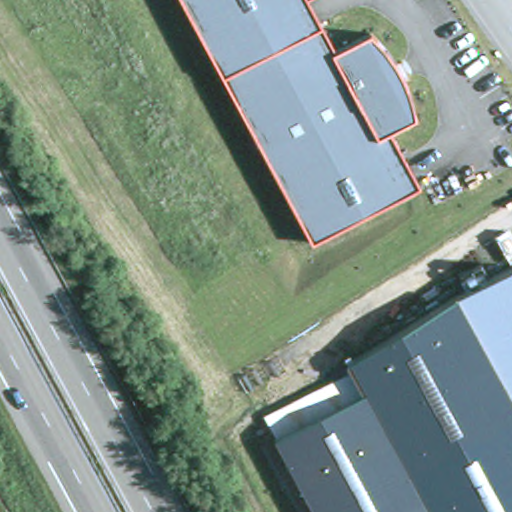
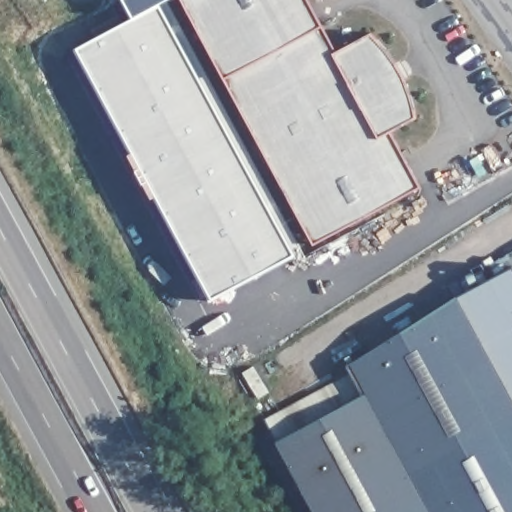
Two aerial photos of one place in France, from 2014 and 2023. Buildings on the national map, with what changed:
new [(158,4),(295,251),(208,300),(71,47),(130,12),(123,0),(166,0),(158,4)]
unchanged [(338,44),(373,29),(406,66),(421,116),(396,128),(423,186),(316,242),(185,0),(315,0),(338,44)]
unchanged [(512,267),(512,408),(452,298),(512,267)]
unchanged [(452,298),(512,408),(512,512),(429,512),(364,391),(349,366),(452,298)]
unchanged [(364,391),(429,512),(316,512),(276,438),(364,391)]

